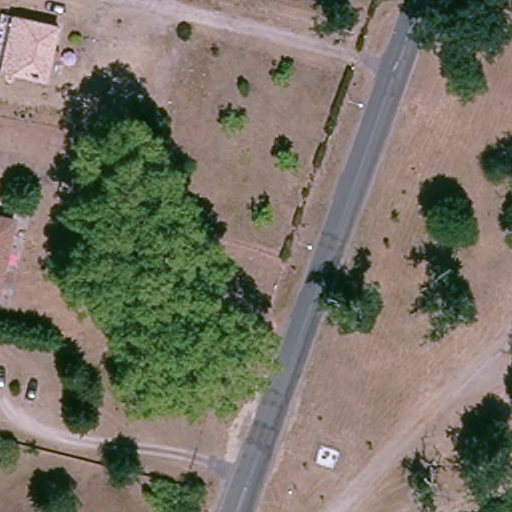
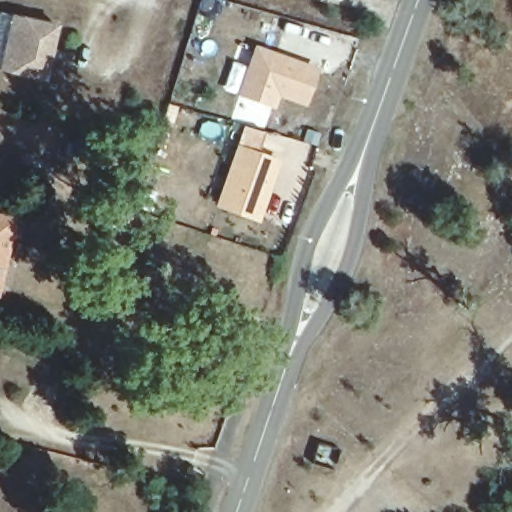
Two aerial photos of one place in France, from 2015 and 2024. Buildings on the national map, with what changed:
unchanged [(51,18),(40,70),(0,61),(0,56),(12,9),(51,18)]
new [(306,105),(280,96),(276,110),(237,95),(255,45),(320,68),(306,105)]
new [(283,160),(260,222),(215,206),(238,144),(283,160)]
unchanged [(0,272),(0,210),(15,213),(0,272)]

